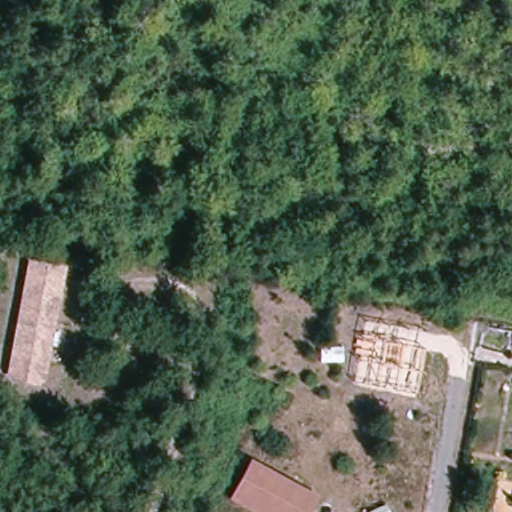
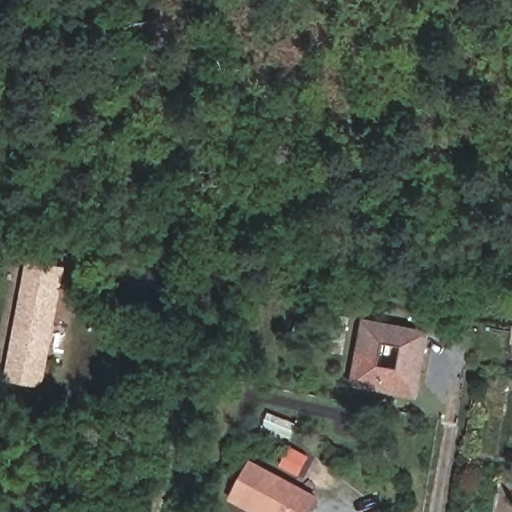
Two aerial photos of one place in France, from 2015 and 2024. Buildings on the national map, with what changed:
unchanged [(65,267),(43,387),(13,383),(12,372),(31,262),(65,267)]
new [(362,317),(432,330),(419,398),(351,387),(362,317)]
unchanged [(315,512),(248,512),(234,504),(257,467),(301,492),(320,503),(315,512)]

